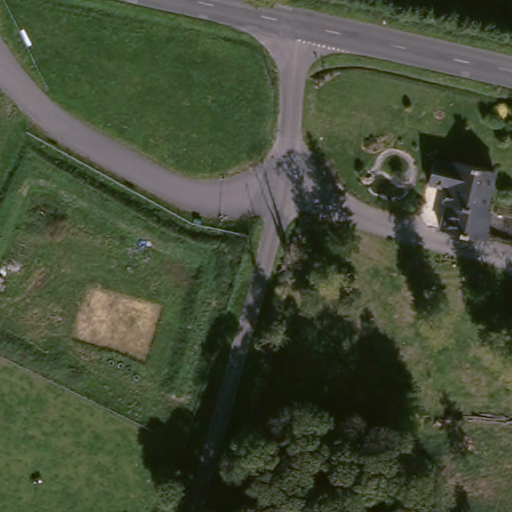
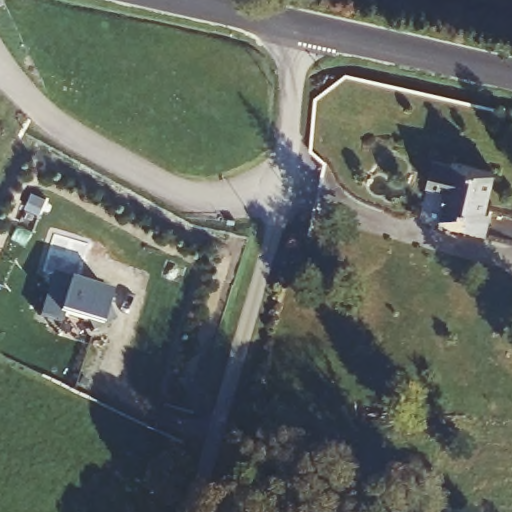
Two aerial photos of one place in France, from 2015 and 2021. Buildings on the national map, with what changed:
unchanged [(454,168),(455,165),(493,174),(485,209),(495,211),(490,237),(445,227),(450,204),(445,202),(448,185),(427,180),(431,163),(454,168)]
new [(71,278),(70,279),(111,293),(101,327),(64,315),(61,323),(39,316),(51,273),(71,278)]

